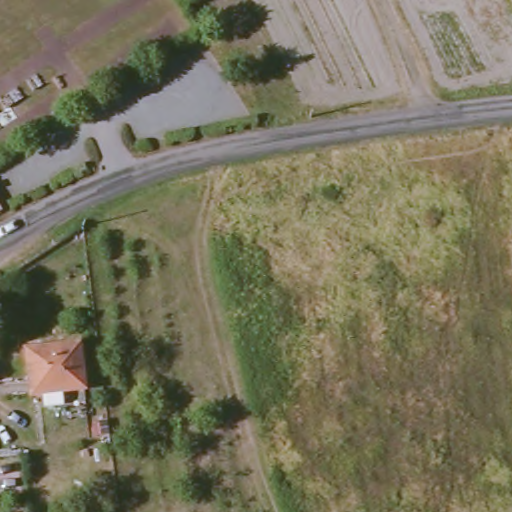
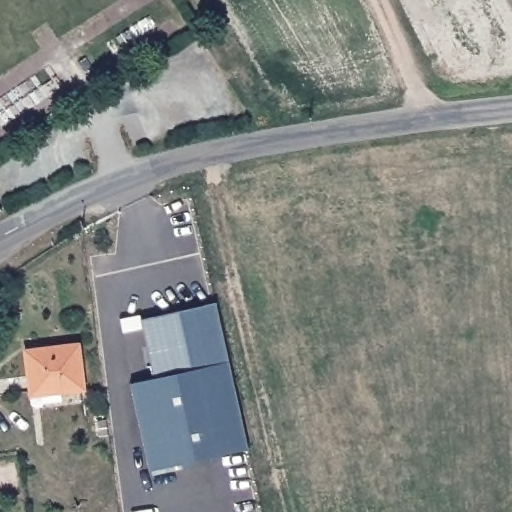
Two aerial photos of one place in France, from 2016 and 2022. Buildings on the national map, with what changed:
new [(250,450),(146,469),(131,380),(156,375),(142,316),(217,300),(250,450)]
unchanged [(34,395),(29,352),(79,347),(84,388),(34,395)]

